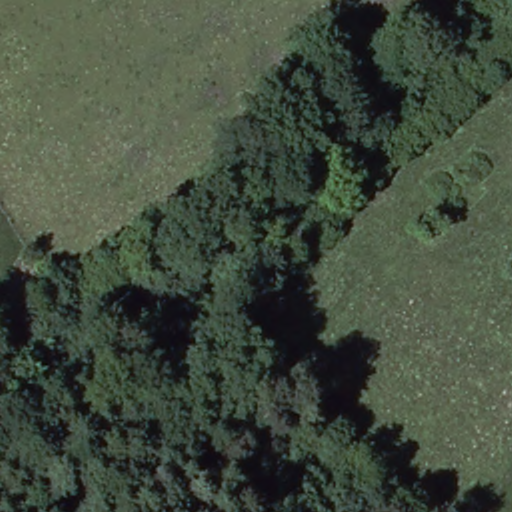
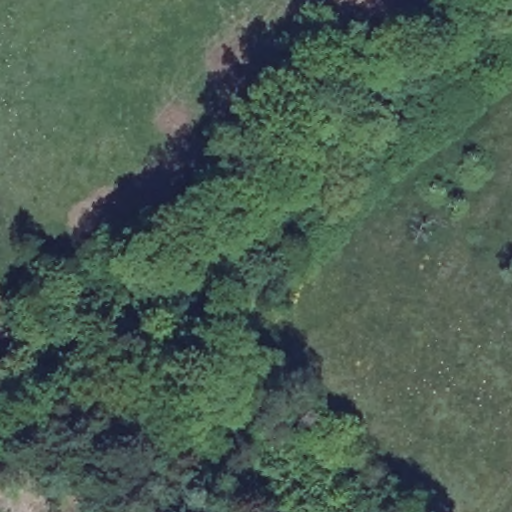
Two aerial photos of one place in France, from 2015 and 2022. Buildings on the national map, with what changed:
[]

